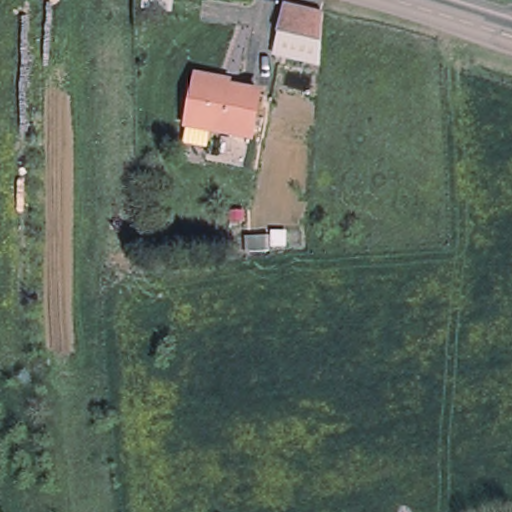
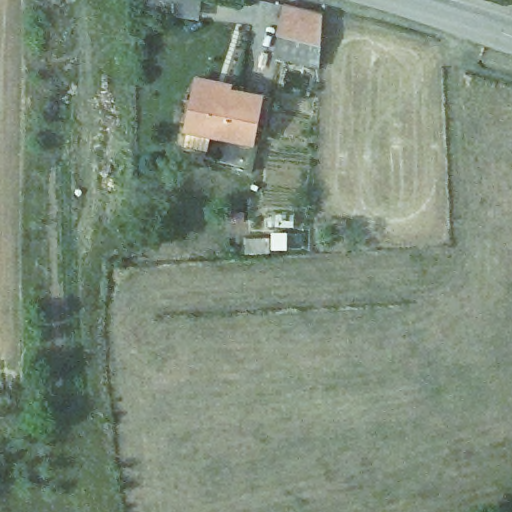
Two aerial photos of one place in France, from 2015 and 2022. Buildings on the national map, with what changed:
unchanged [(323,12),(320,42),(280,32),(283,2),(323,12)]
unchanged [(251,136),(214,132),(212,147),(195,145),(188,144),(193,90),(194,79),(228,82),(227,87),(256,90),(251,136)]
unchanged [(269,234),(269,249),(248,250),(247,235),(269,234)]

